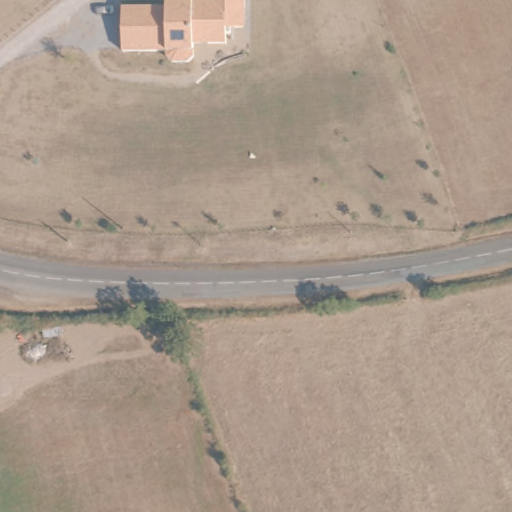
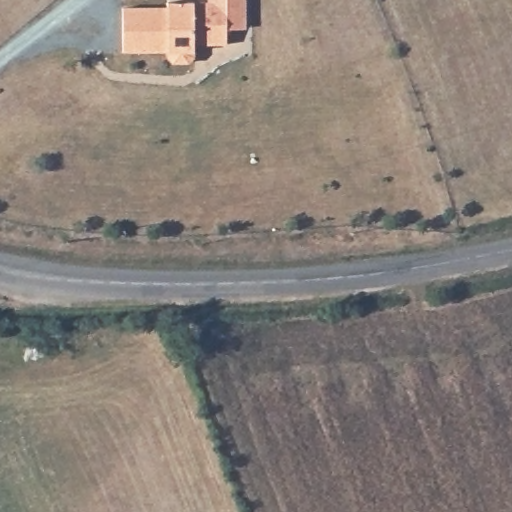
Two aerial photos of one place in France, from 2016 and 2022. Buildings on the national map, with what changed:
unchanged [(193,60),(187,65),(172,65),(167,60),(167,54),(122,54),(122,11),(166,10),(166,5),(207,5),(207,0),(244,0),(244,11),(244,30),(226,30),(226,46),(206,47),(193,47),(193,60)]

